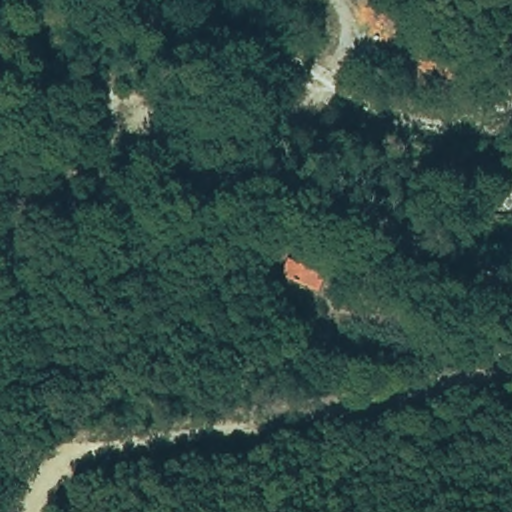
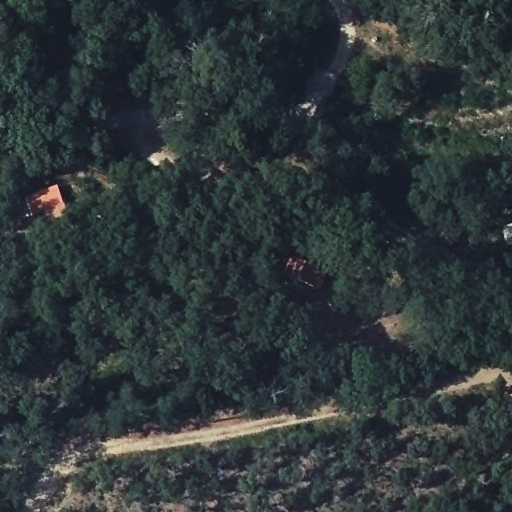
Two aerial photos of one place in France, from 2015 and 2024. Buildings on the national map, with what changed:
unchanged [(282,282),(292,255),(331,273),(325,296),(282,282)]

